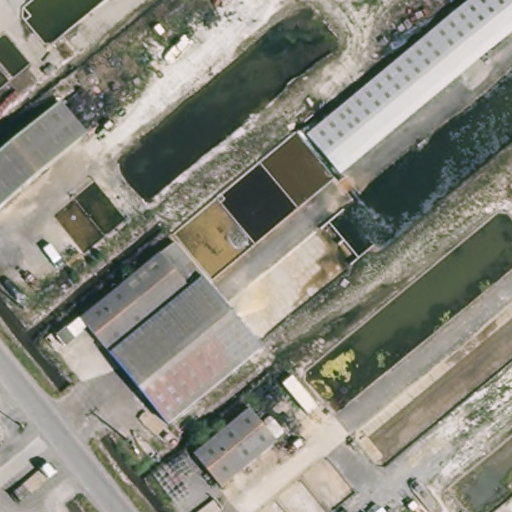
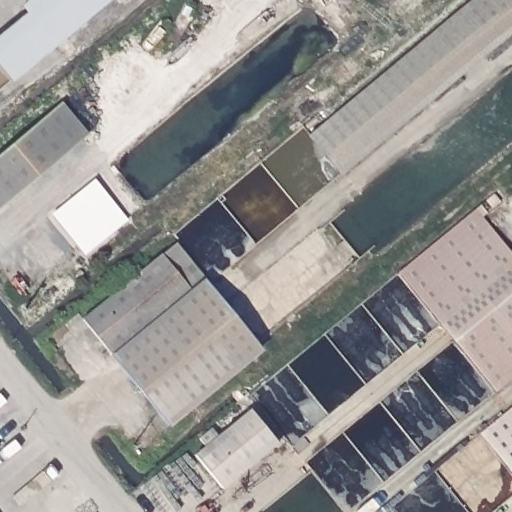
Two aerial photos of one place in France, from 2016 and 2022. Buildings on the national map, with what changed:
unchanged [(305,135),(470,0),(512,0),(512,34),(338,175),(305,135)]
unchanged [(67,109),(92,142),(54,172),(27,139),(67,109)]
unchanged [(0,213),(0,160),(27,139),(54,172),(0,213)]
new [(397,271),(482,202),(488,210),(481,216),(512,253),(512,377),(495,391),(397,271)]
unchanged [(265,348),(171,428),(83,317),(176,242),(265,348)]
new [(479,433),(512,405),(512,474),(479,433)]
unchanged [(205,445),(220,433),(224,439),(257,413),(283,448),(228,491),(201,456),(210,450),(205,445)]

